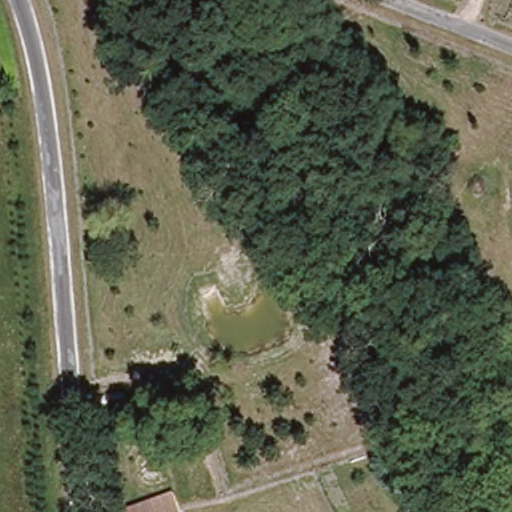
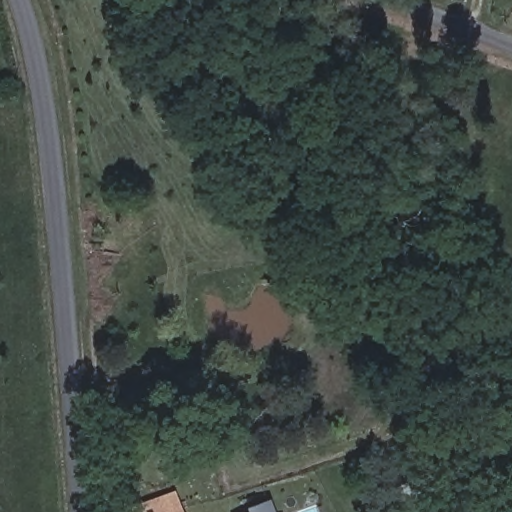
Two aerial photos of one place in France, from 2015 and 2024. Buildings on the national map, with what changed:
unchanged [(422,472),(441,512),(405,512),(393,487),(422,472)]
unchanged [(136,512),(134,506),(175,491),(184,512),(136,512)]
new [(271,502),(274,512),(253,512),(252,509),(271,502)]

